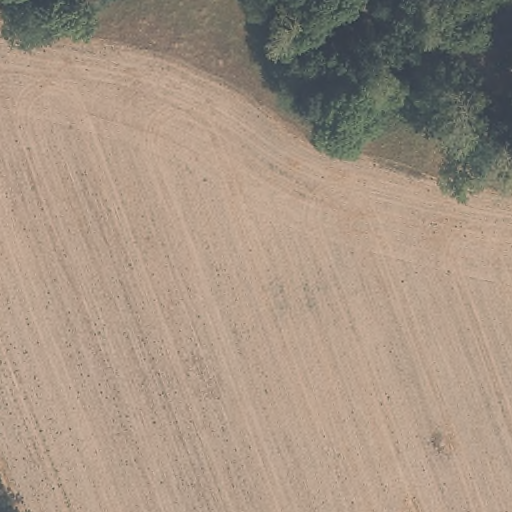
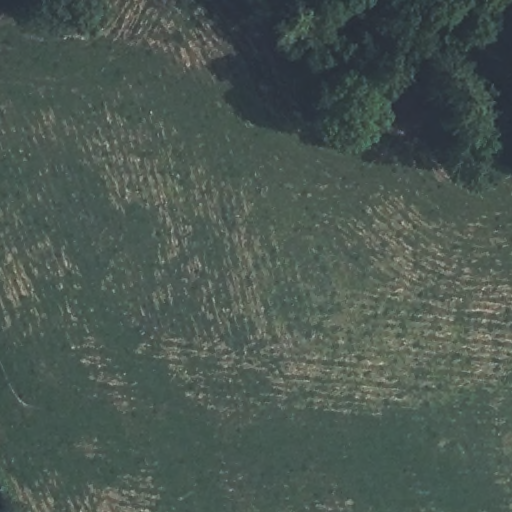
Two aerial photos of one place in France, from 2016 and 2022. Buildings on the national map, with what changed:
[]

